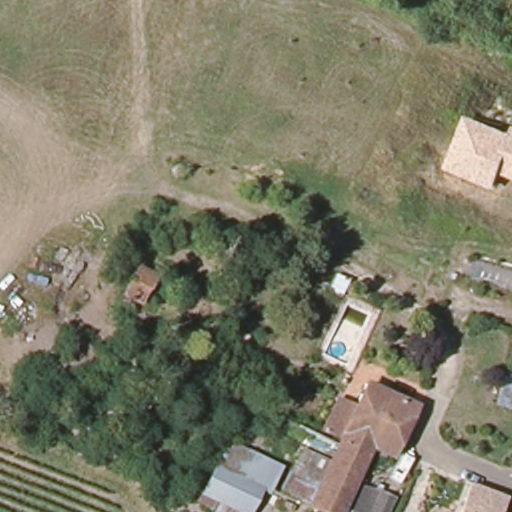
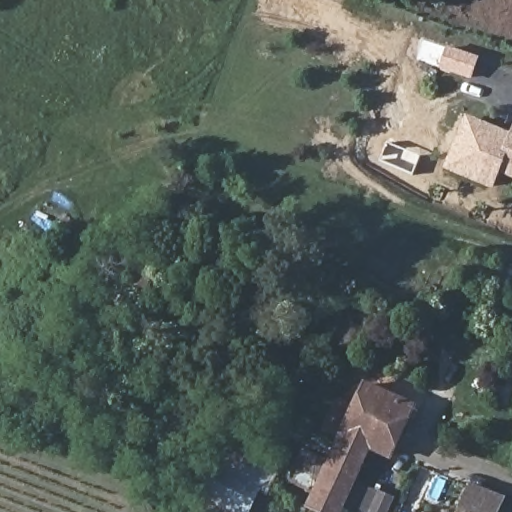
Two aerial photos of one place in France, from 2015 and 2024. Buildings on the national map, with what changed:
new [(446,50),(475,60),(468,79),(439,69),(446,50)]
unchanged [(493,188),(443,168),(465,115),(510,133),(512,127),(512,178),(499,173),(493,188)]
unchanged [(341,284),(333,298),(325,294),(331,280),(341,284)]
unchanged [(512,364),(512,410),(500,407),(512,364)]
unchanged [(341,438),(325,430),(340,401),(356,409),(369,386),(415,407),(391,458),(375,451),(341,512),(324,512),(310,506),(287,495),(302,462),(325,472),(338,443),(341,438)]
unchanged [(212,467),(251,487),(240,511),(200,492),(212,467)]
unchanged [(511,505),(508,512),(425,512),(442,476),(511,505)]
unchanged [(356,512),(365,488),(397,501),(392,512),(356,512)]

